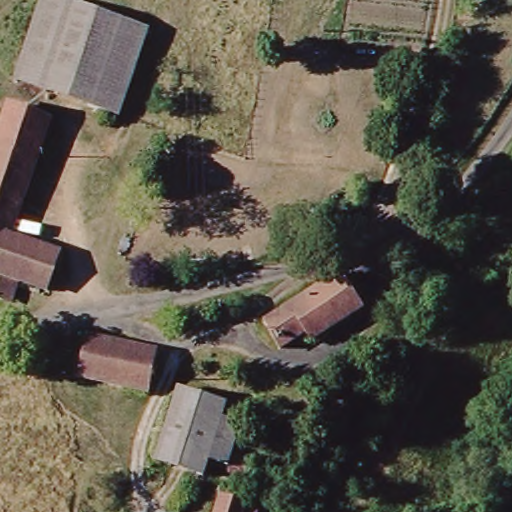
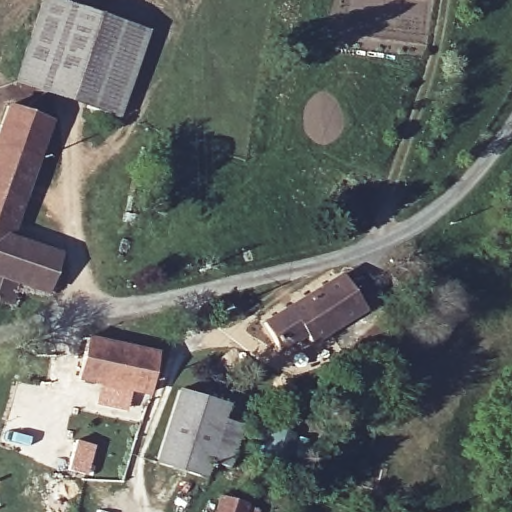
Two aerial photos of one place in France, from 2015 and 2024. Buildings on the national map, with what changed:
unchanged [(50,0),(68,0),(97,10),(126,19),(118,46),(98,107),(22,85),(41,30),(48,6),(50,0)]
unchanged [(126,19),(150,25),(138,60),(120,115),(98,107),(118,46),(126,19)]
unchanged [(55,118),(40,166),(0,154),(0,148),(14,105),(55,118)]
unchanged [(17,240),(0,235),(0,154),(40,166),(17,240)]
unchanged [(17,240),(62,255),(50,291),(27,285),(20,288),(15,305),(0,300),(0,235),(17,240)]
unchanged [(271,322),(344,275),(366,309),(313,341),(308,335),(287,347),(271,322)]
unchanged [(153,390),(90,377),(94,340),(160,353),(153,390)]
unchanged [(224,470),(227,463),(210,459),(206,473),(162,460),(182,390),(230,404),(226,420),(242,424),(234,450),(246,453),(243,464),(240,475),(224,470)]
new [(75,440),(94,445),(86,474),(67,469),(75,440)]
unchanged [(261,512),(224,512),(227,499),(238,502),(262,508),(261,512)]

